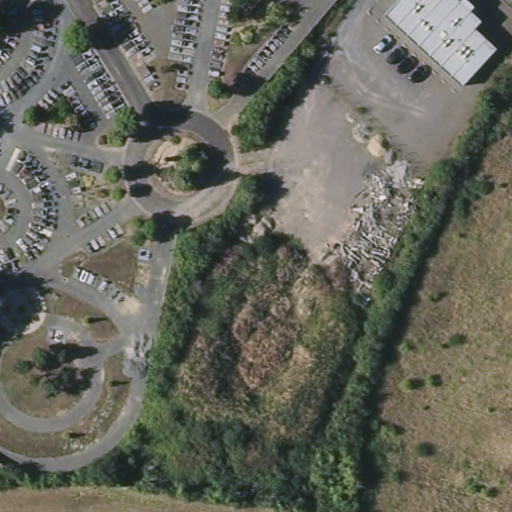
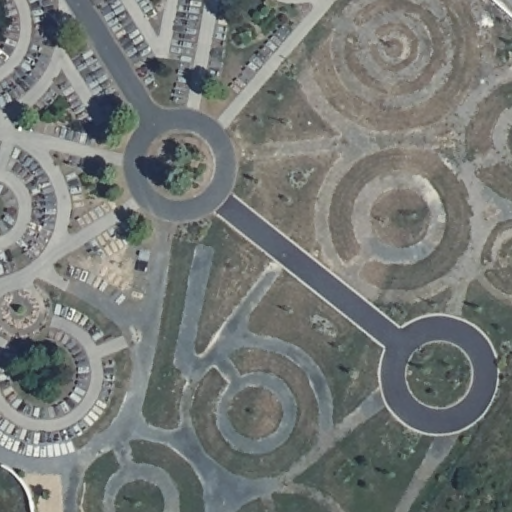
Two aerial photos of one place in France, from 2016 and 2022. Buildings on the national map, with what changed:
demolished [(495,50),(461,88),(383,17),(399,0),(456,0),(480,22),(473,30),(495,50)]

